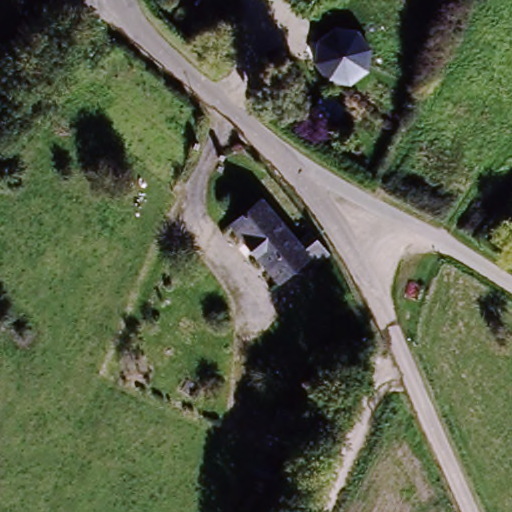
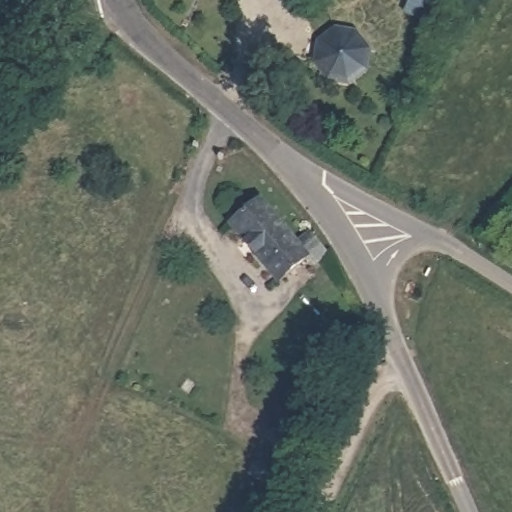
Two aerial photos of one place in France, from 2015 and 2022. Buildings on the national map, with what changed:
unchanged [(320,62),(329,42),(346,33),(367,42),(373,61),(366,78),(348,89),(329,80),(320,62)]
unchanged [(300,250),(313,239),(331,261),(318,273),(310,264),(279,290),(229,232),(261,205),(300,250)]
unchanged [(298,437),(286,467),(259,456),(271,426),(298,437)]
unchanged [(271,470),(268,477),(278,481),(271,497),(246,485),(256,463),(271,470)]

